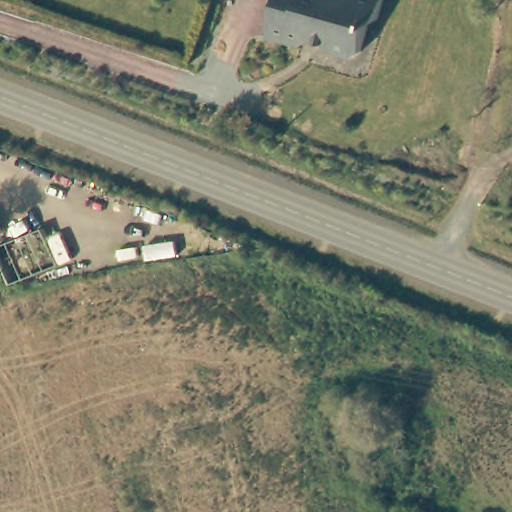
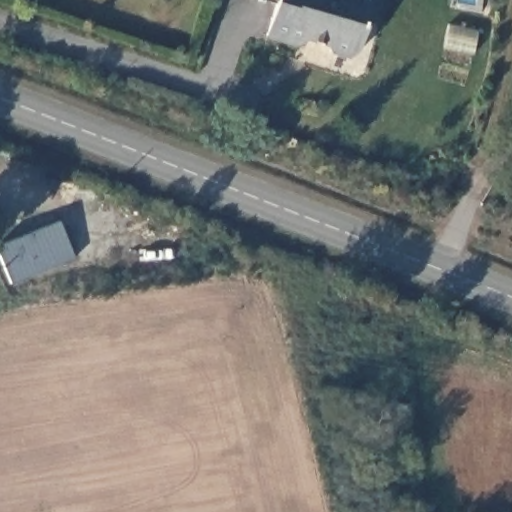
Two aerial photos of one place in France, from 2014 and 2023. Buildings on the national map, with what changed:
unchanged [(366,24),(356,55),(347,60),(326,54),(321,46),(306,41),(295,48),(264,38),(277,0),(379,0),(374,19),(366,24)]
new [(0,257),(0,247),(61,220),(77,258),(12,286),(0,257)]

